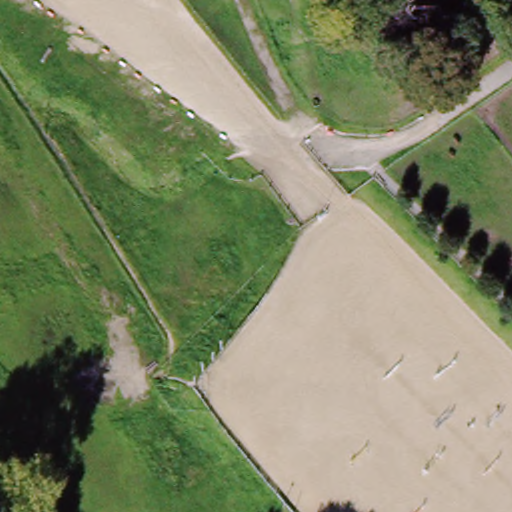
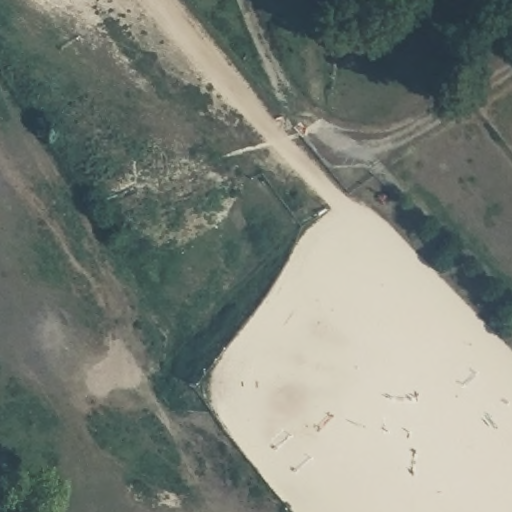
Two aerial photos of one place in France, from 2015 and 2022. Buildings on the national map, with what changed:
[]

